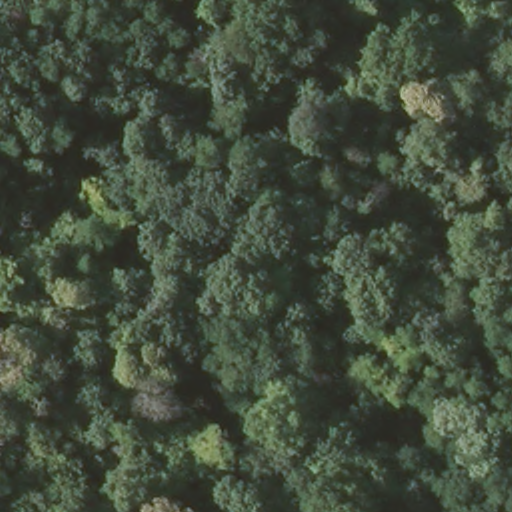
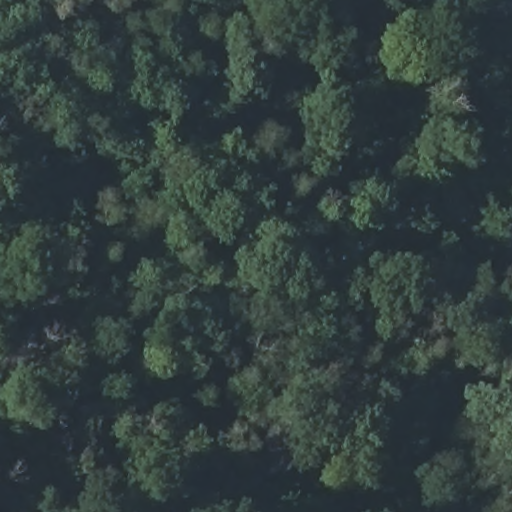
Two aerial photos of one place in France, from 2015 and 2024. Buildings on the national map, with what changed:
[]

